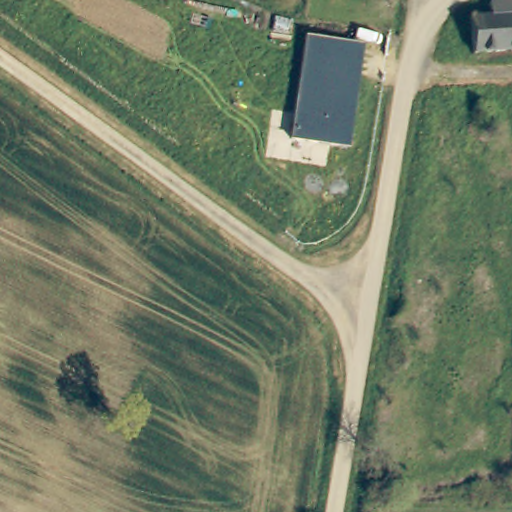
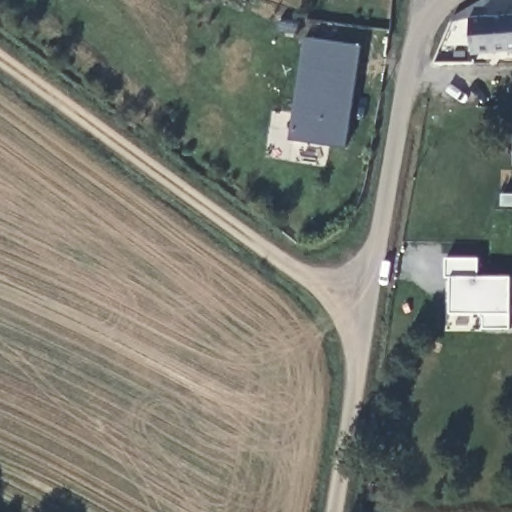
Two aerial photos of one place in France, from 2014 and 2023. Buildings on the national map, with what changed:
unchanged [(470,15),(491,13),(490,0),(512,0),(512,50),(475,53),(470,15)]
unchanged [(350,142),(293,133),(307,33),(364,41),(350,142)]
new [(482,313),(448,311),(449,257),(484,258),(484,276),(512,276),(512,327),(483,327),(482,313)]

